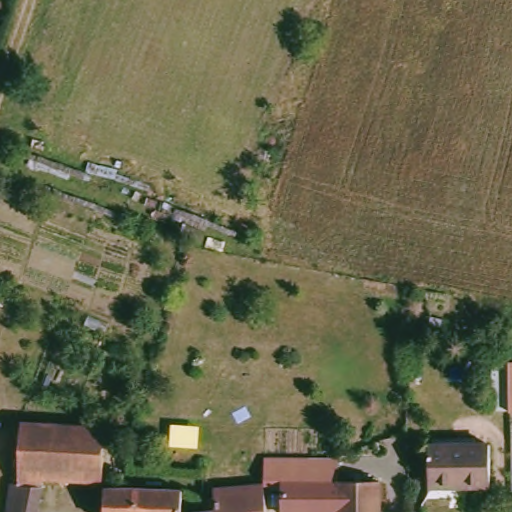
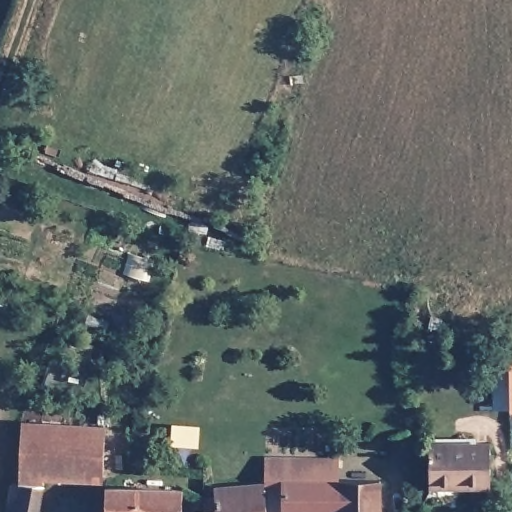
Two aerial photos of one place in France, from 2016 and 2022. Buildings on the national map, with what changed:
unchanged [(512,413),(505,412),(506,362),(512,363),(512,413)]
unchanged [(104,424),(98,476),(38,472),(35,500),(0,496),(4,471),(11,472),(18,416),(104,424)]
unchanged [(423,475),(424,445),(485,445),(485,484),(449,484),(422,484),(423,475)]
unchanged [(310,455),(309,479),(279,479),(263,478),(265,453),(310,455)]
unchanged [(196,465),(193,500),(177,500),(176,512),(103,512),(104,482),(130,483),(130,460),(196,465)]
unchanged [(296,511),(295,512),(276,512),(279,479),(309,479),(376,480),(376,512),(308,512),(296,511)]
unchanged [(192,509),(197,509),(198,495),(210,495),(210,480),(260,483),(258,512),(191,512),(192,509)]
unchanged [(33,512),(0,512),(0,496),(35,500),(33,512)]

